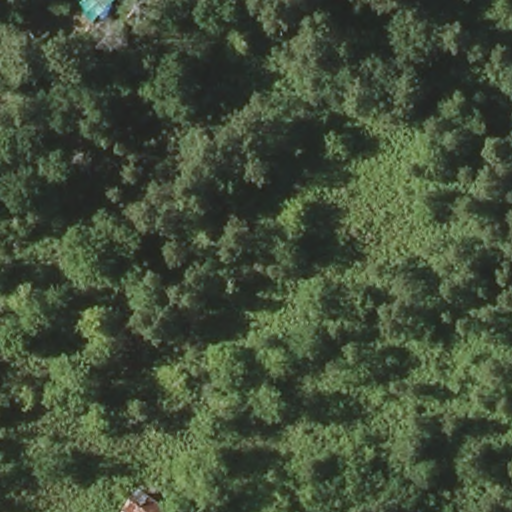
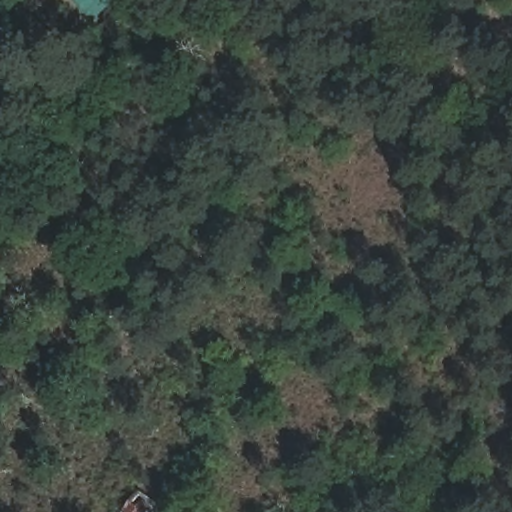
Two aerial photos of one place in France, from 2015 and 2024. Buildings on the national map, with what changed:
unchanged [(181,508),(178,512),(140,512),(155,488),(181,508)]

